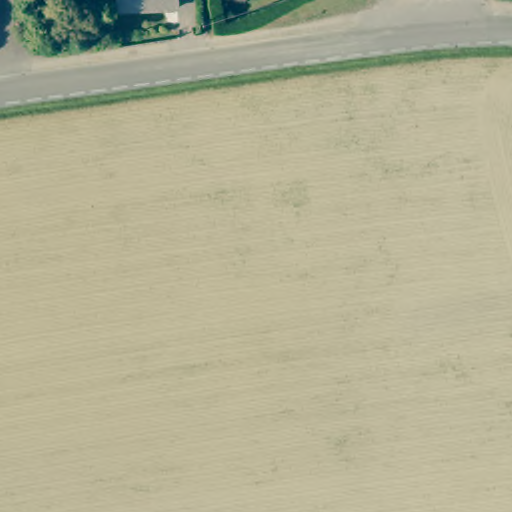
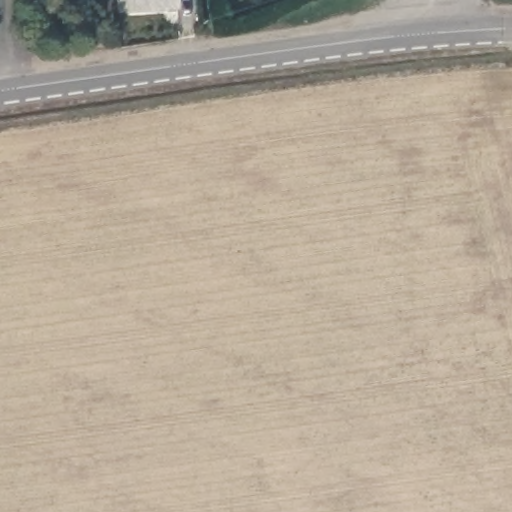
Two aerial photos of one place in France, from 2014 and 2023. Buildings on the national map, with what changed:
unchanged [(175,5),(116,8),(115,0),(175,0),(175,5)]

